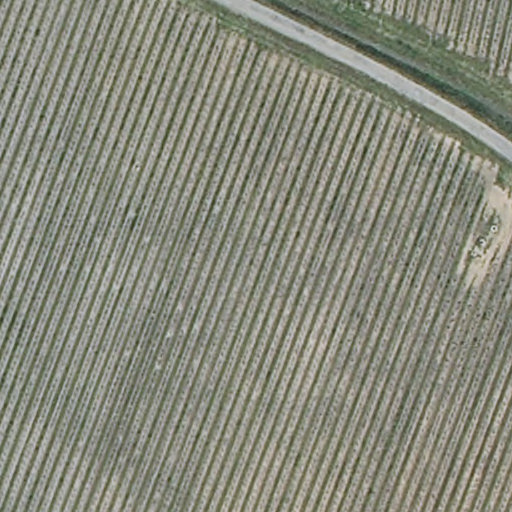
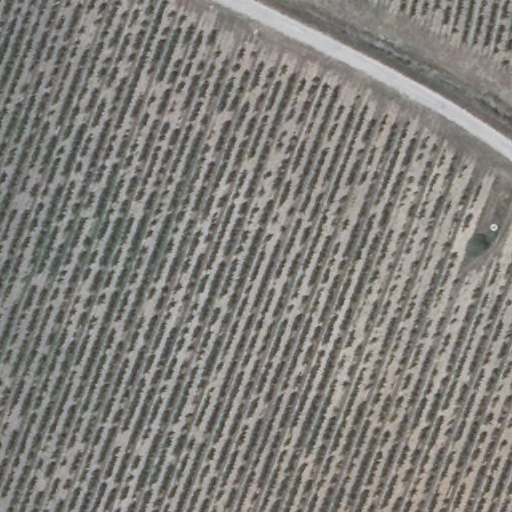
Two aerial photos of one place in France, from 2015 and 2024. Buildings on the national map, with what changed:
[]

